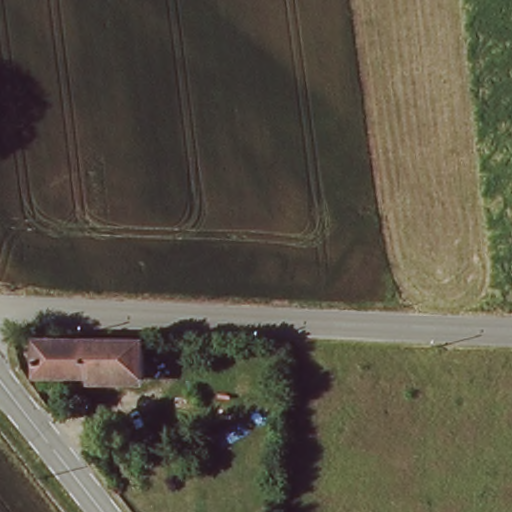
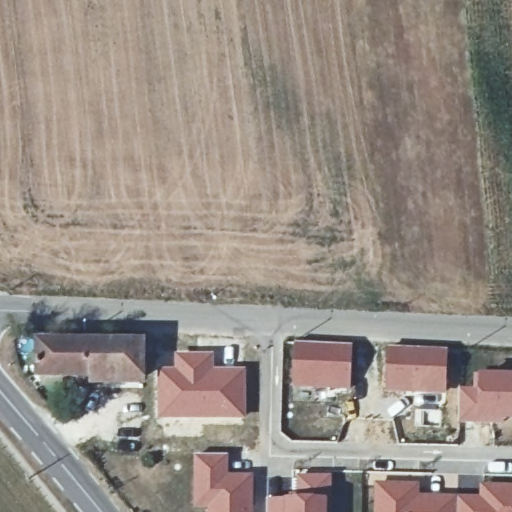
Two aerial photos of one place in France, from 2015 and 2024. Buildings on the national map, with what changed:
unchanged [(40,373),(40,341),(143,343),(143,375),(40,373)]
new [(293,342),(353,344),(351,389),(291,388),(293,342)]
new [(384,346),(448,348),(446,394),(383,392),(384,346)]
new [(157,369),(175,368),(174,354),(214,353),(215,369),(246,368),(246,420),(156,420),(157,369)]
new [(459,387),(474,388),(475,374),(512,374),(512,422),(458,424),(459,387)]
new [(191,455),(228,454),(229,474),(253,474),(253,512),(206,512),(206,510),(191,509),(191,455)]
new [(294,497),(294,474),(331,474),(329,512),(267,512),(266,498),(294,497)]
new [(374,481),(420,482),(420,494),(457,495),(457,512),(373,512),(374,481)]
new [(457,495),(479,495),(479,483),(512,483),(512,512),(457,512),(457,495)]

